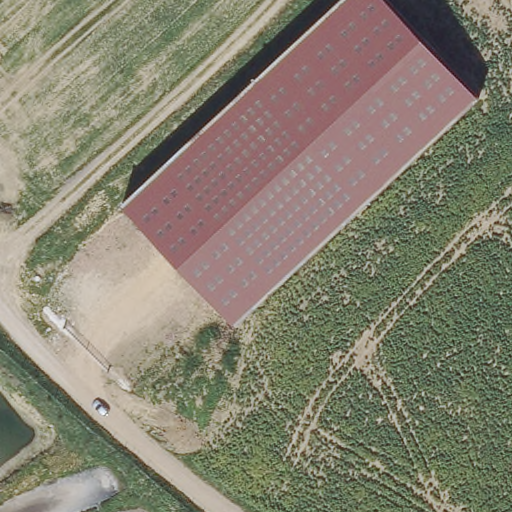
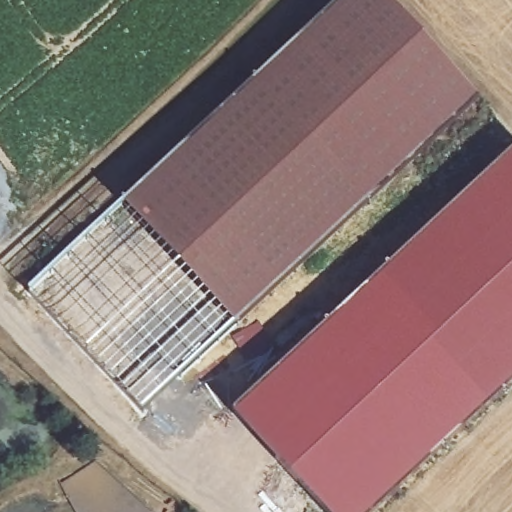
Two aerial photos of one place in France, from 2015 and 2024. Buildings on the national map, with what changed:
unchanged [(234,322),(121,201),(339,0),(387,0),(478,96),(234,322)]
new [(373,512),(326,512),(233,411),(512,150),(512,382),(373,512)]
new [(234,322),(141,410),(26,290),(121,201),(234,322)]

